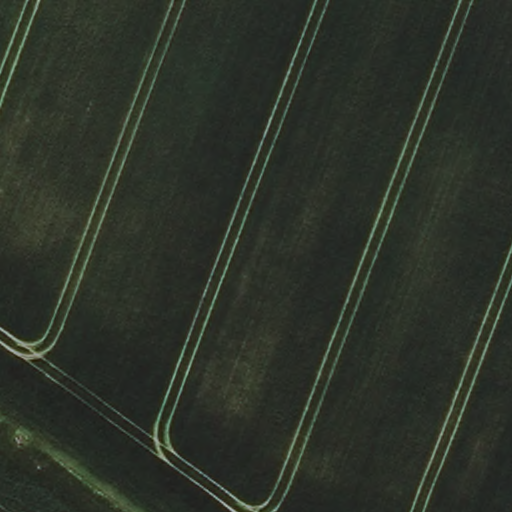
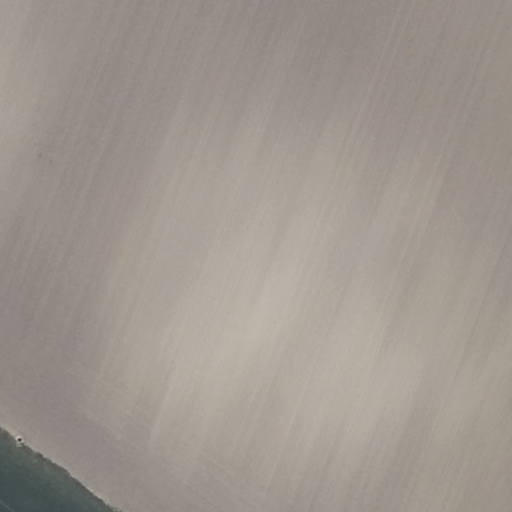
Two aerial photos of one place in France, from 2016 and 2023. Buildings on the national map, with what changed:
[]

